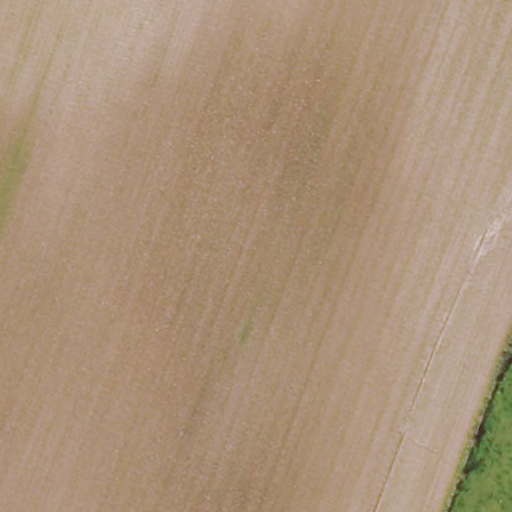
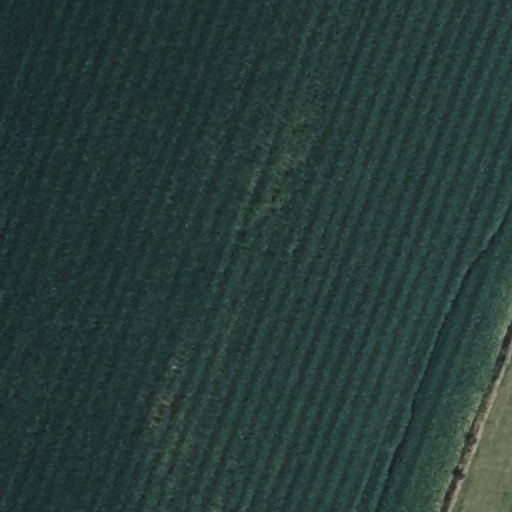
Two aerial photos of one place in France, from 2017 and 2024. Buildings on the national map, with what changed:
[]

